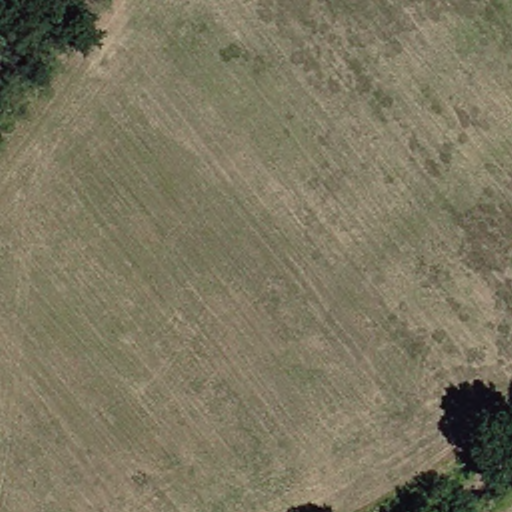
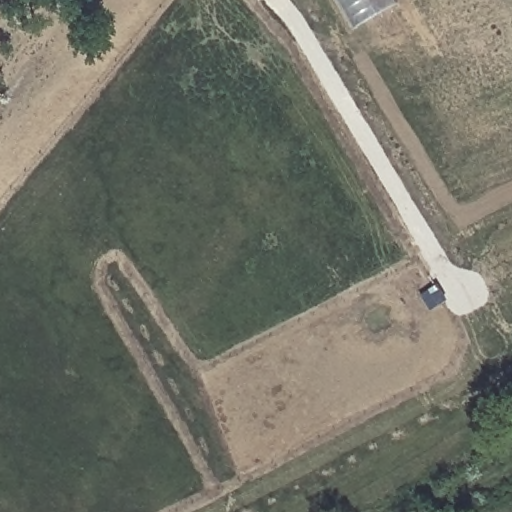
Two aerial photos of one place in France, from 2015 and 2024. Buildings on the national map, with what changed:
new [(393,6),(351,30),(333,0),(390,0),(393,6)]
demolished [(310,350),(297,360),(288,351),(299,338),(310,350)]

